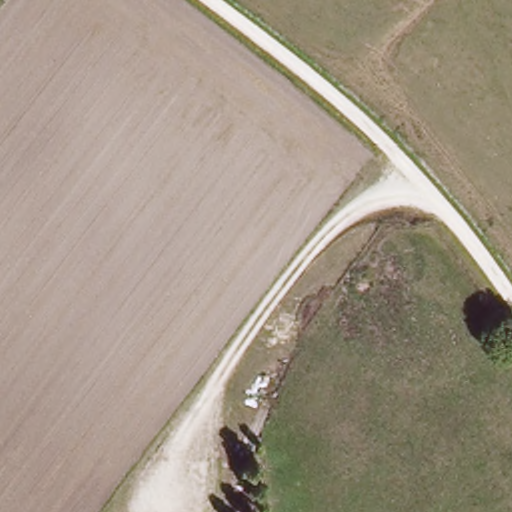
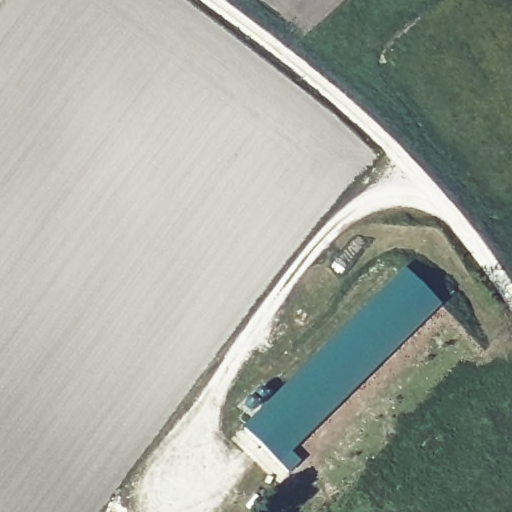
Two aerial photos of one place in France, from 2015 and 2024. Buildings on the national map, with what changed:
new [(405,269),(438,302),(291,451),(302,461),(290,473),(246,430),(405,269)]

